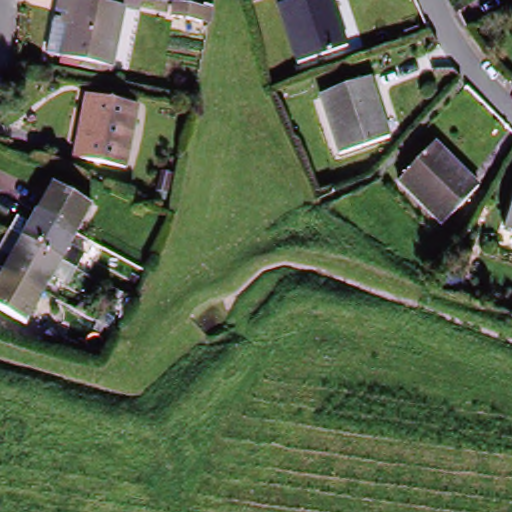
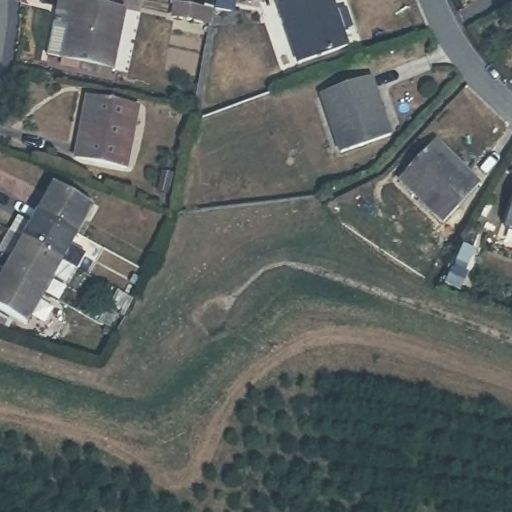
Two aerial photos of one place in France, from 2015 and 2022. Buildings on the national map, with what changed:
unchanged [(126,73),(112,70),(112,77),(98,74),(100,68),(100,67),(61,59),(67,29),(74,0),(89,3),(139,14),(126,73)]
unchanged [(278,7),(275,0),(330,0),(347,47),(298,64),(278,7)]
unchanged [(172,19),(175,5),(204,11),(201,25),(172,19)]
unchanged [(341,153),(321,95),(371,79),(390,137),(341,153)]
unchanged [(76,159),(85,99),(137,108),(126,168),(76,159)]
unchanged [(443,218),(399,176),(436,138),(479,180),(443,218)]
unchanged [(42,212),(57,184),(97,207),(82,234),(42,212)]
unchanged [(504,228),(512,204),(512,231),(504,228)]
unchanged [(9,270),(0,264),(7,253),(2,250),(14,231),(12,230),(22,214),(36,222),(42,212),(82,234),(66,261),(49,292),(30,324),(0,308),(0,283),(2,283),(9,270)]

